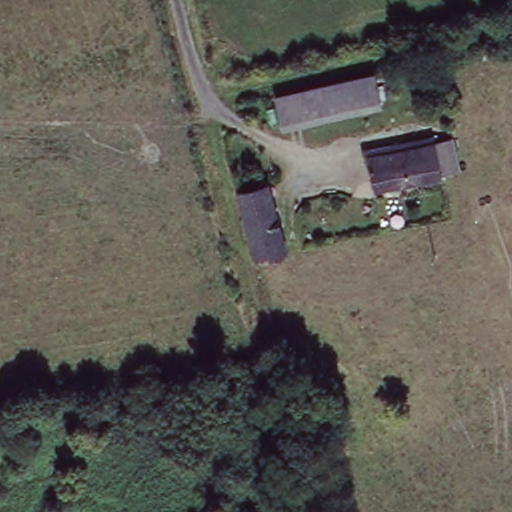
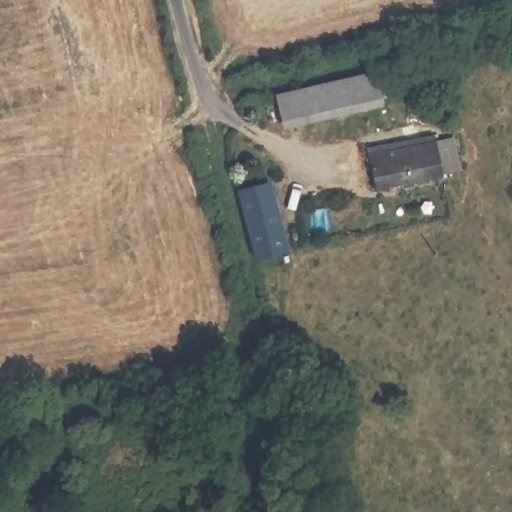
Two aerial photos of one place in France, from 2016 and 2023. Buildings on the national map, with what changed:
unchanged [(375,72),(382,99),(282,124),(275,96),(375,72)]
unchanged [(378,194),(367,148),(400,139),(432,131),(435,144),(443,178),(378,194)]
unchanged [(250,183),(278,177),(296,245),(269,253),(250,183)]
unchanged [(309,395),(340,385),(347,404),(313,411),(309,395)]

